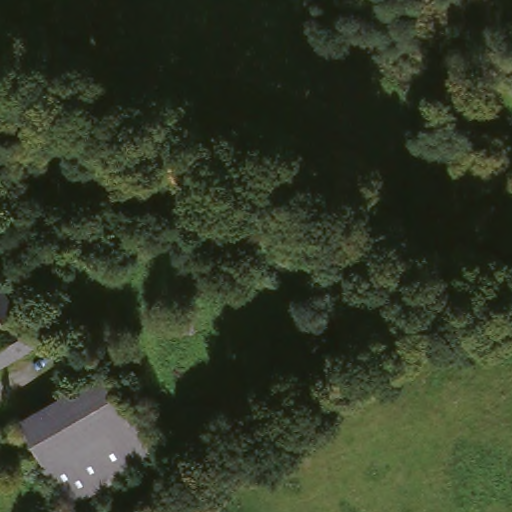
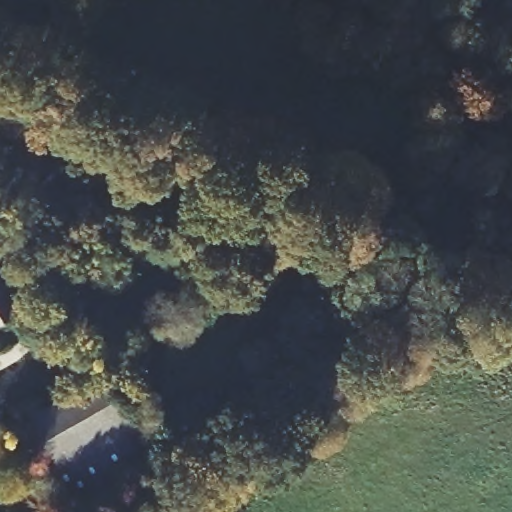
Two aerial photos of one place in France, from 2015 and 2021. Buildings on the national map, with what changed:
unchanged [(0,319),(0,290),(15,310),(0,319)]
unchanged [(0,363),(0,330),(22,317),(38,341),(0,363)]
unchanged [(152,453),(65,507),(16,420),(105,367),(152,453)]

